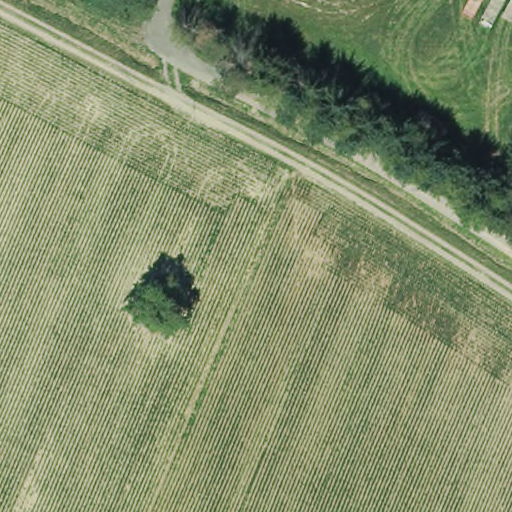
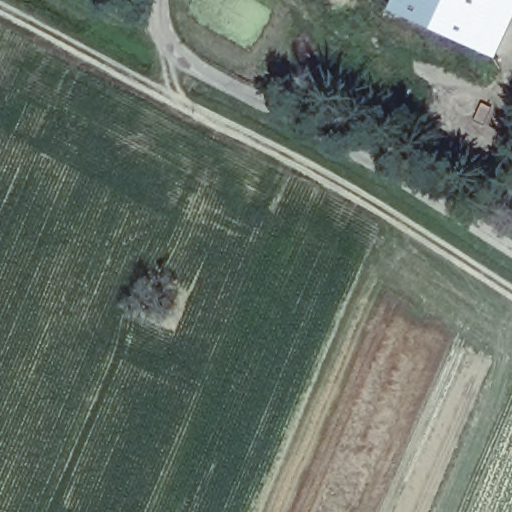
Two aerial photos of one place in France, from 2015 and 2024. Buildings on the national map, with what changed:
new [(512,50),(507,60),(403,12),(408,0),(512,0),(512,50)]

